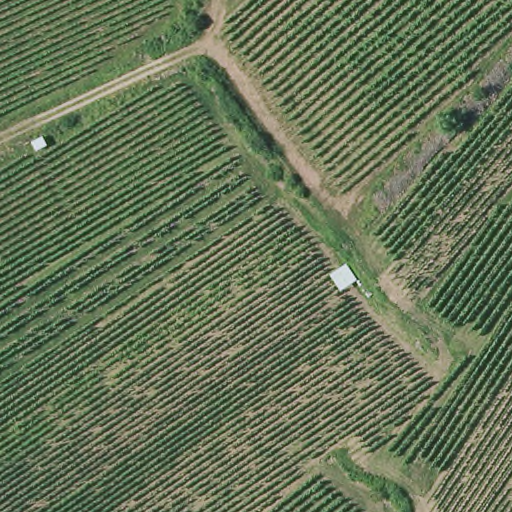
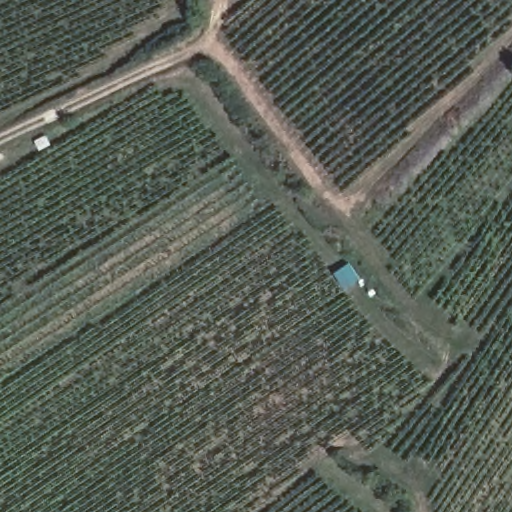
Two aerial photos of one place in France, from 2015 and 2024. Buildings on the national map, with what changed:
unchanged [(342,291),(330,274),(348,262),(363,279),(342,291)]

